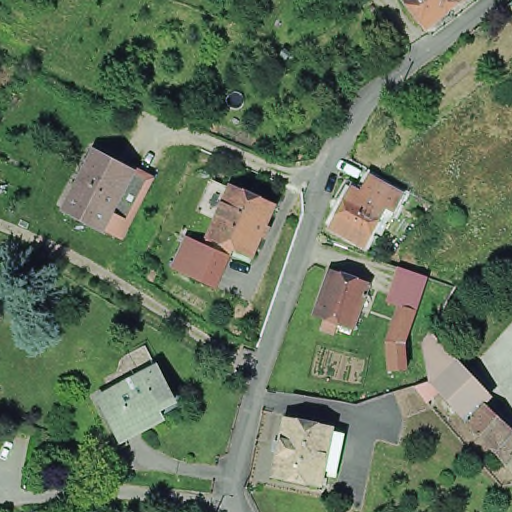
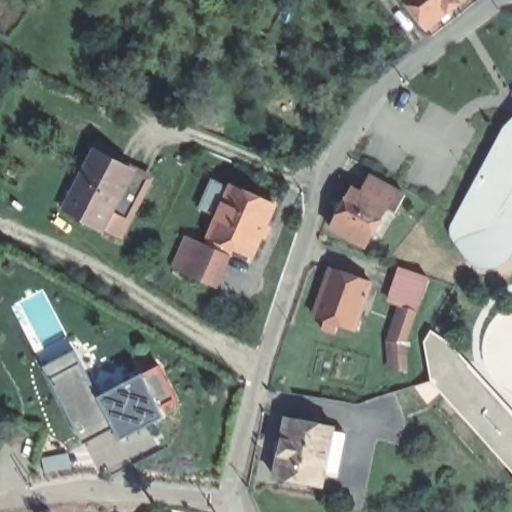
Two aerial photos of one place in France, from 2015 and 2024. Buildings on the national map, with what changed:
unchanged [(423,30),(400,0),(459,0),(423,30)]
new [(503,257),(498,261),(492,263),(486,263),(479,260),(459,240),(454,234),(454,229),(454,225),(508,129),(512,126),(512,240),(503,257)]
unchanged [(133,171),(101,229),(63,209),(96,150),(133,171)]
unchanged [(363,247),(328,227),(351,188),(359,193),(361,190),(369,176),(403,196),(396,210),(394,214),(385,209),(363,247)]
unchanged [(238,189),(281,208),(257,260),(238,251),(234,259),(231,258),(218,289),(196,279),(204,263),(195,259),(201,245),(211,249),(214,241),(238,189)]
unchanged [(403,371),(390,371),(389,341),(400,307),(389,303),(392,297),(387,296),(392,282),(397,267),(427,277),(421,292),(417,306),(416,306),(403,341),(403,371)]
unchanged [(324,329),(328,320),(318,316),(334,269),(373,283),(356,329),(341,324),(338,334),(324,329)]
unchanged [(421,385),(433,382),(434,381),(428,343),(434,332),(494,396),(487,403),(486,402),(469,420),(444,393),(435,401),(421,385)]
new [(84,444),(44,367),(75,351),(104,398),(118,426),(84,444)]
unchanged [(179,399),(163,407),(168,416),(125,439),(104,398),(163,368),(179,399)]
unchanged [(482,435),(469,420),(486,402),(487,403),(512,427),(512,437),(498,452),(482,435)]
unchanged [(339,479),(326,477),(324,487),(277,477),(289,418),(336,428),(335,433),(348,435),(339,479)]
unchanged [(498,452),(512,437),(512,468),(498,452)]

